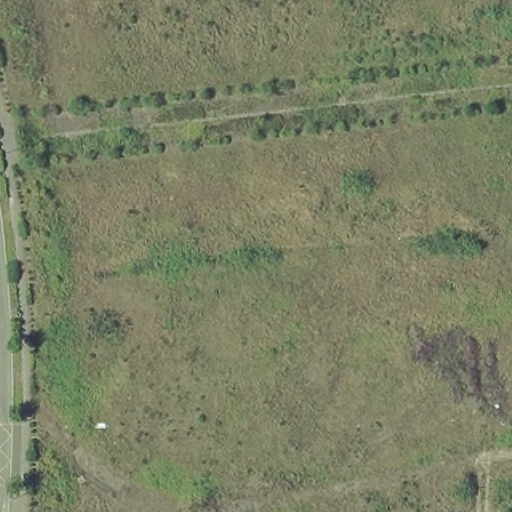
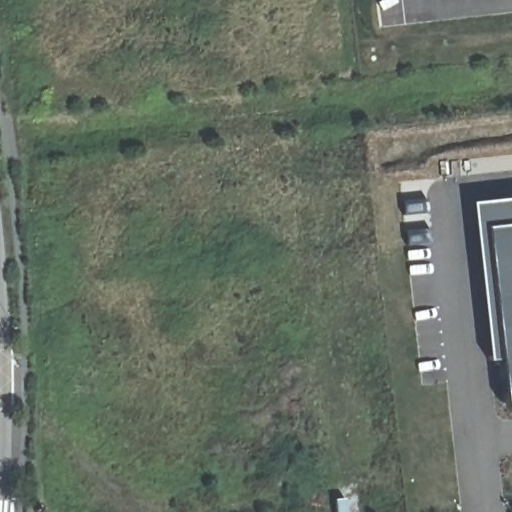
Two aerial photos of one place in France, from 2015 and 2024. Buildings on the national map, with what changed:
new [(505,362),(495,362),(477,203),(512,199),(512,410),(511,410),(505,362)]

